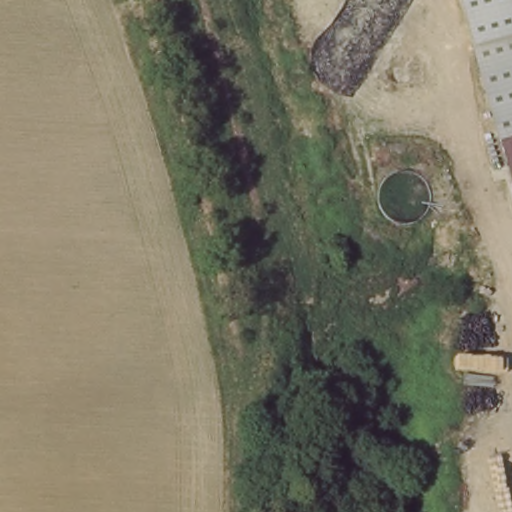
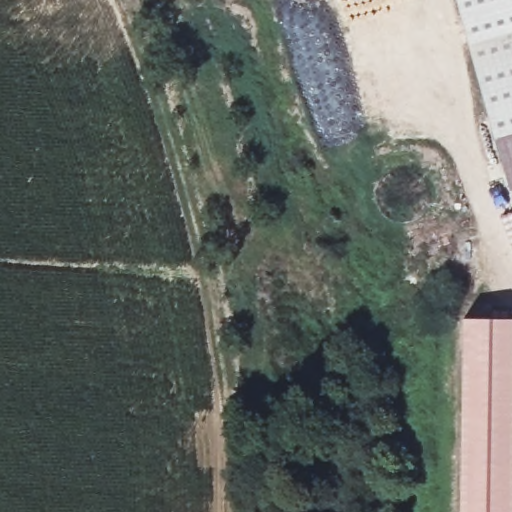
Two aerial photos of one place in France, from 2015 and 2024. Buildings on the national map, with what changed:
unchanged [(465,41),(453,0),(512,0),(512,134),(493,138),(465,41)]
unchanged [(493,138),(512,134),(512,191),(507,192),(493,138)]
new [(512,319),(512,512),(460,512),(463,318),(512,319)]

